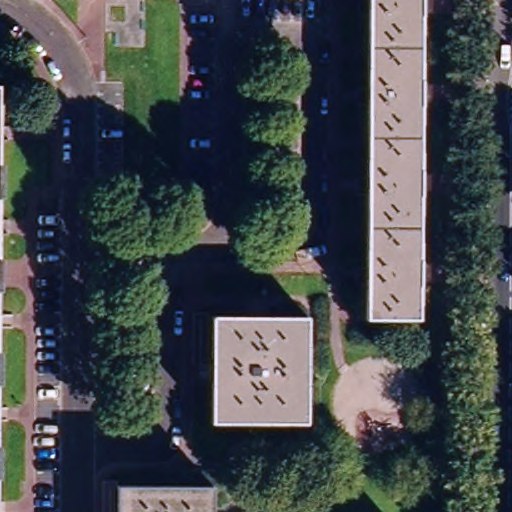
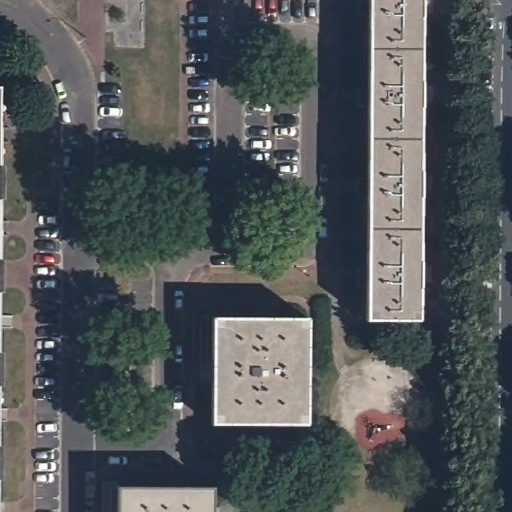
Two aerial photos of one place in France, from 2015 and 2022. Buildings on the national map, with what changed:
unchanged [(370,0),(421,0),(418,320),(366,319),(370,0)]
unchanged [(212,422),(213,318),(307,318),(306,424),(212,422)]
unchanged [(117,487),(212,487),(212,512),(117,512),(117,487)]

